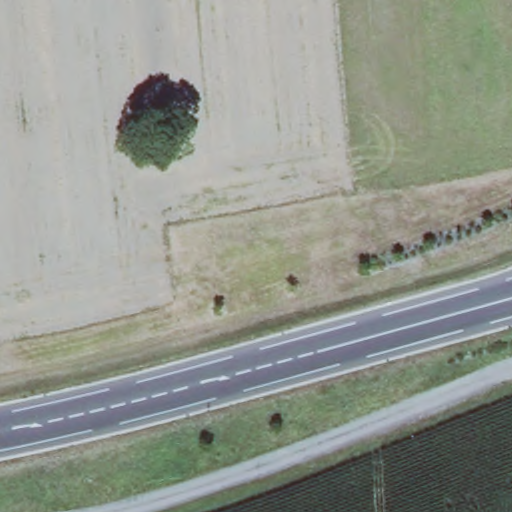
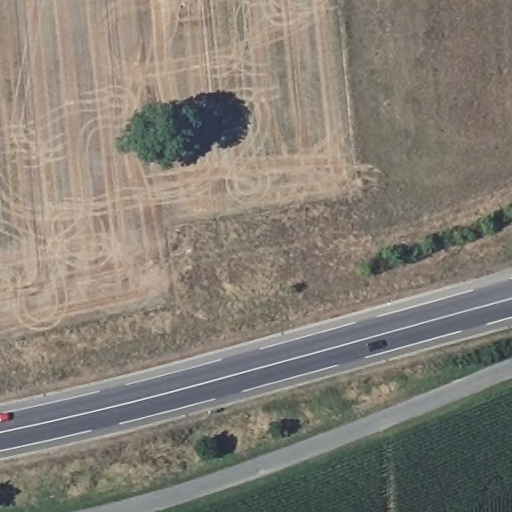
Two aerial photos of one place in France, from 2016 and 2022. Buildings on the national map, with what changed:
[]

